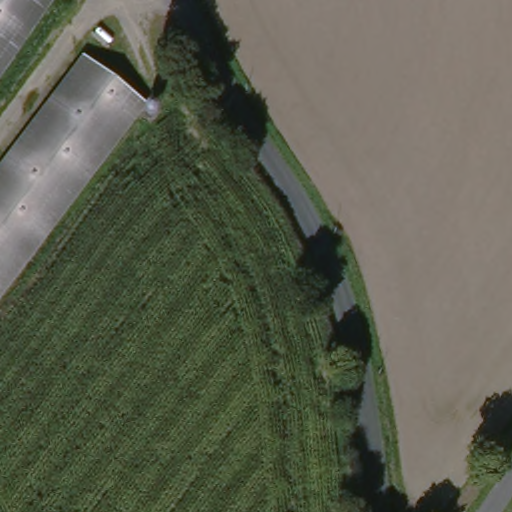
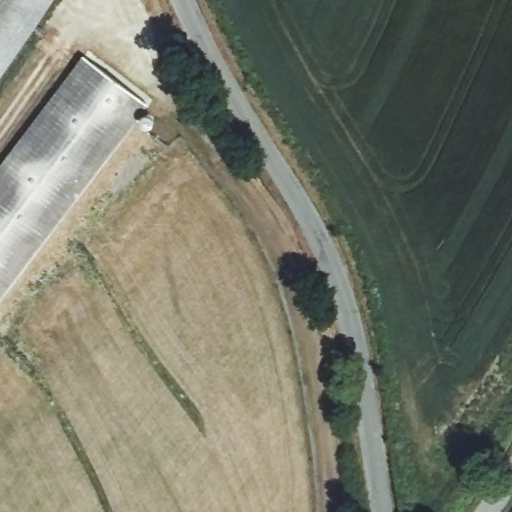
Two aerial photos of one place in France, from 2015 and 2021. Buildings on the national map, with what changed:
unchanged [(0,69),(0,0),(47,0),(0,69)]
unchanged [(151,109),(0,308),(0,160),(80,54),(151,109)]

